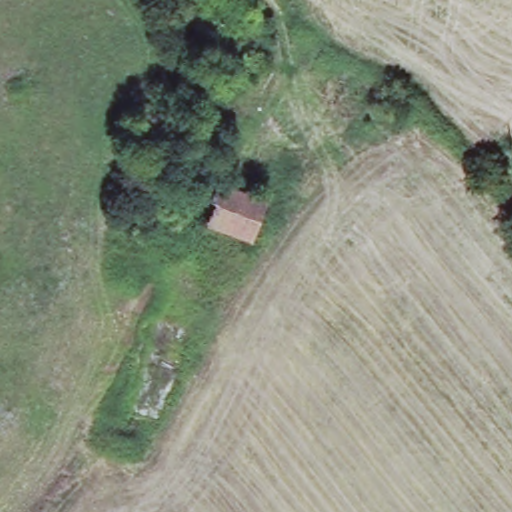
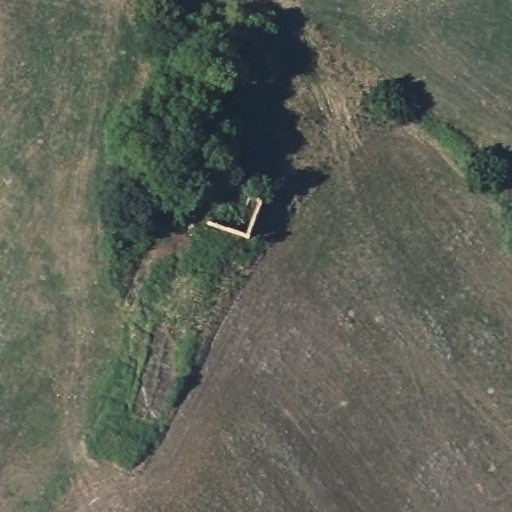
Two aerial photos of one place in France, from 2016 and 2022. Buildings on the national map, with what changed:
unchanged [(252,243),(185,216),(202,171),(235,184),(270,197),(252,243)]

